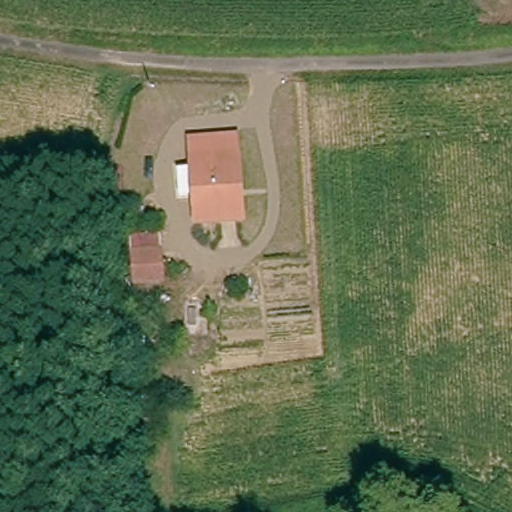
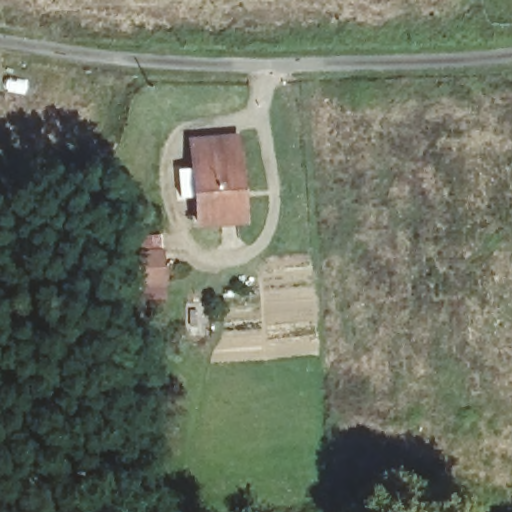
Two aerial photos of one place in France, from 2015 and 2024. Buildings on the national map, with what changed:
unchanged [(240,167),(235,167),(237,206),(244,205),(245,227),(200,231),(193,149),(239,145),(240,167)]
unchanged [(138,293),(136,264),(134,248),(164,246),(165,261),(167,291),(138,293)]

